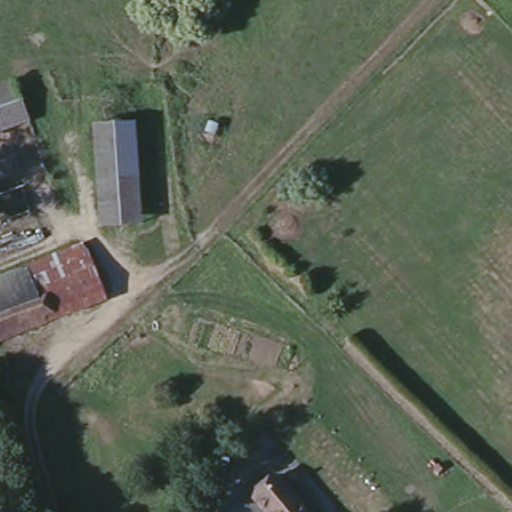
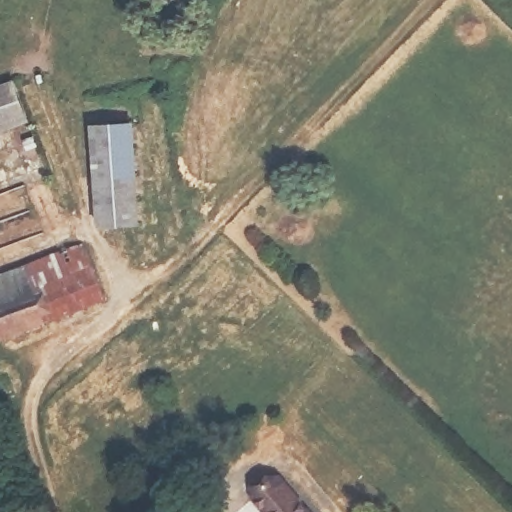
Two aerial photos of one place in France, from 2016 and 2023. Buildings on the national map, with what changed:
unchanged [(31,119),(0,130),(0,87),(16,81),(31,119)]
unchanged [(144,227),(102,231),(95,132),(135,130),(144,227)]
unchanged [(37,288),(0,303),(0,279),(87,245),(109,300),(50,323),(37,288)]
unchanged [(0,343),(0,303),(37,288),(50,323),(0,343)]
unchanged [(270,512),(256,496),(280,476),(308,512),(270,512)]

